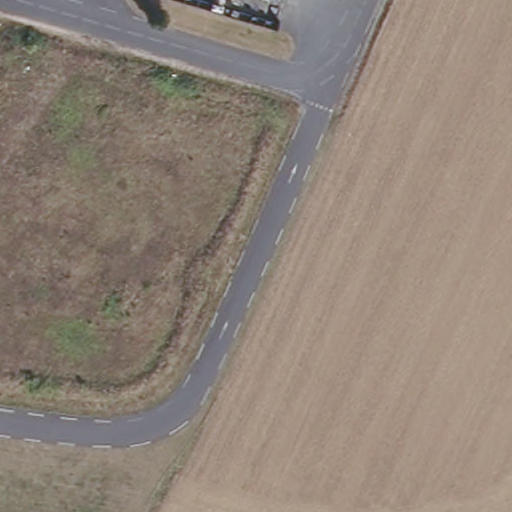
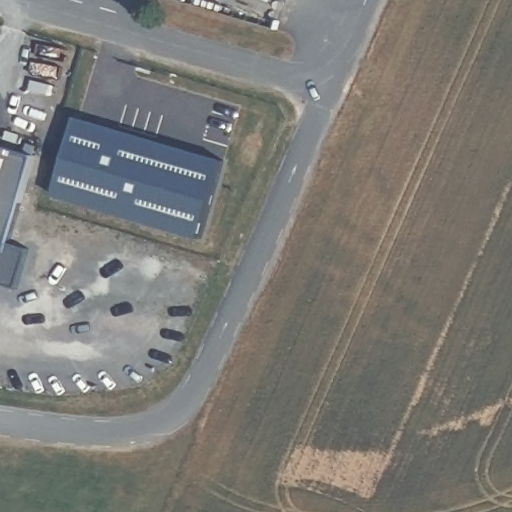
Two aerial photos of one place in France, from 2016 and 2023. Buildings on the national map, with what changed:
new [(81,126),(219,169),(198,238),(56,196),(81,126)]
new [(32,160),(2,254),(0,254),(0,149),(32,160)]

